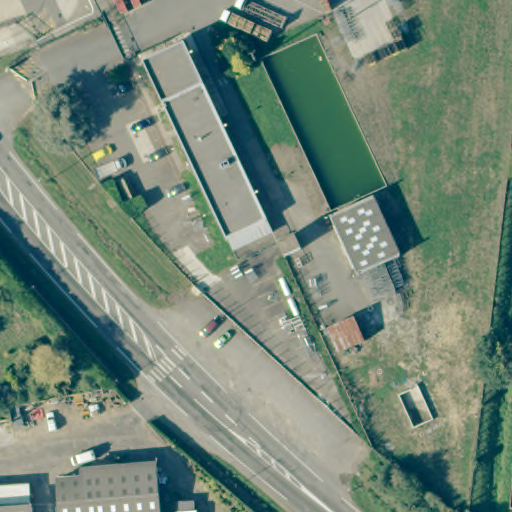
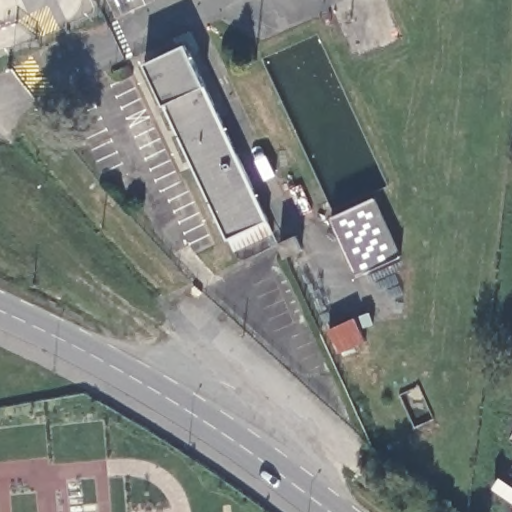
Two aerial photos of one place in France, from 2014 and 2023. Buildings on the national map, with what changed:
unchanged [(234,241),(229,230),(226,231),(143,55),(184,36),(268,212),(273,223),(234,241)]
unchanged [(305,201),(297,205),(290,190),(298,186),(305,201)]
unchanged [(404,251),(362,272),(335,214),(378,194),(404,251)]
unchanged [(285,258),(278,244),(294,237),(301,251),(285,258)]
unchanged [(338,354),(327,330),(353,319),(363,342),(338,354)]
demolished [(85,475),(85,467),(159,463),(162,512),(62,512),(60,477),(85,475)]
demolished [(34,512),(0,512),(0,505),(34,503),(34,512)]

